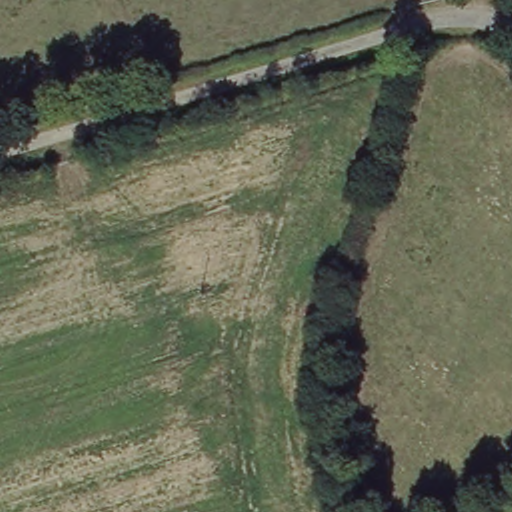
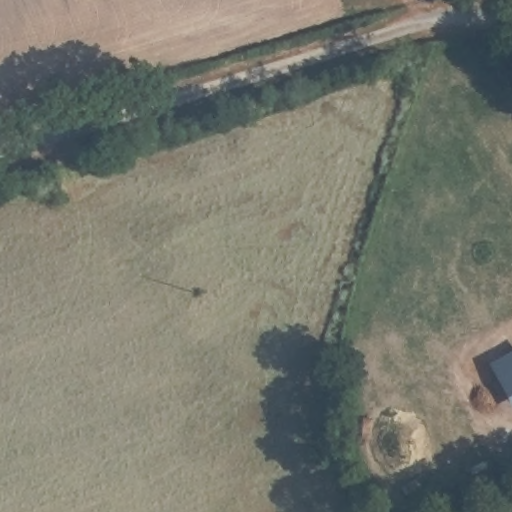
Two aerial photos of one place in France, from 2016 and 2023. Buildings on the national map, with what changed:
new [(512,412),(511,413),(489,368),(512,356),(512,412)]

